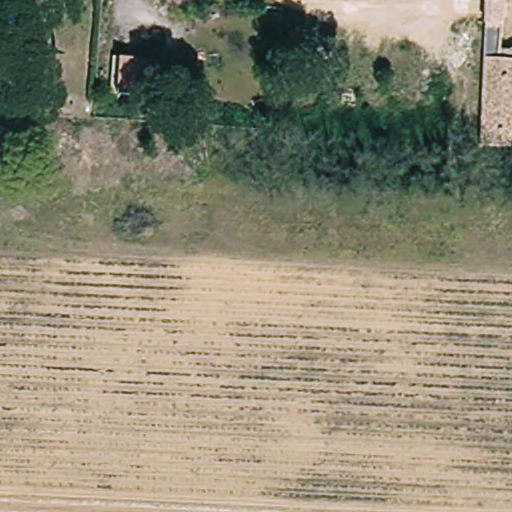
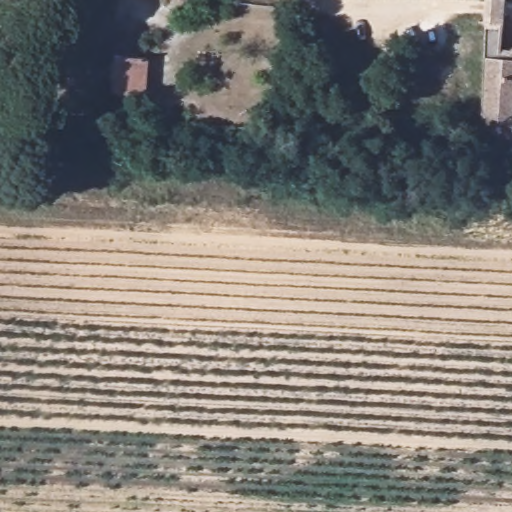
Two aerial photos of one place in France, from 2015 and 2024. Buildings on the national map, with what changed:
unchanged [(512,49),(512,48),(512,142),(479,139),(489,19),(489,14),(489,11),(490,0),(502,0),(501,14),(499,49),(510,50),(512,49)]
unchanged [(123,61),(155,64),(153,93),(120,90),(123,61)]

